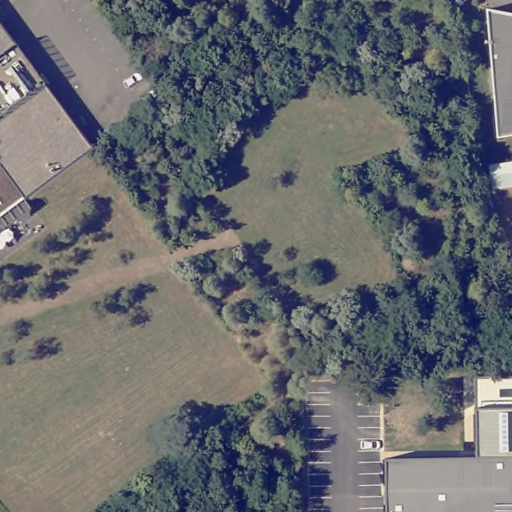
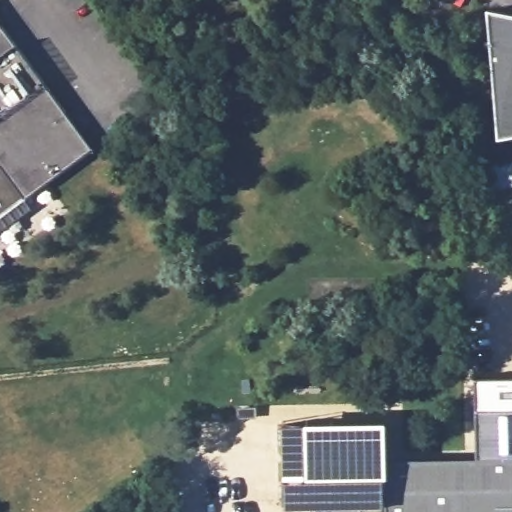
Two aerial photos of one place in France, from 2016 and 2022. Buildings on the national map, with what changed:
unchanged [(512,134),(499,136),(489,18),(488,7),(512,12),(512,134)]
unchanged [(91,144),(0,212),(0,22),(91,144)]
unchanged [(512,377),(512,512),(385,512),(385,459),(477,456),(476,410),(475,377),(512,377)]
new [(384,418),(385,459),(386,505),(283,507),(281,421),(384,418)]

